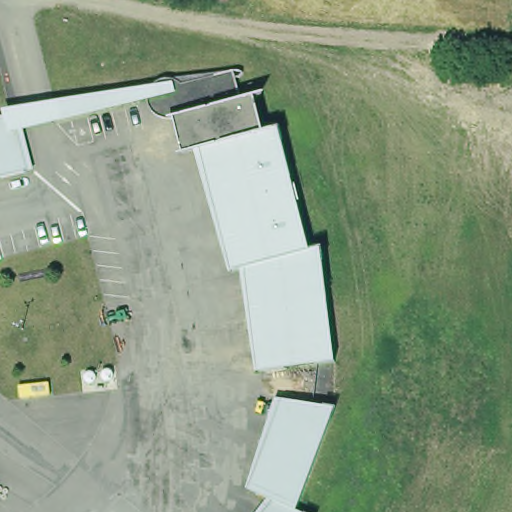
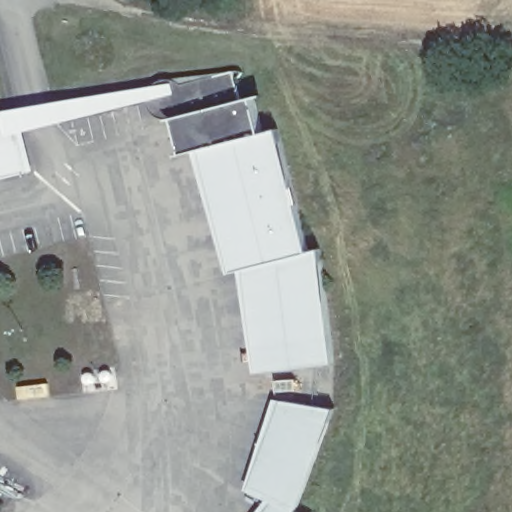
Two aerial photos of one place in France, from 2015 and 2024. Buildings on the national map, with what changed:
unchanged [(241,103),(255,99),(264,135),(288,128),(321,251),(332,248),(330,362),(255,372),(242,268),(228,272),(197,150),(178,154),(169,119),(168,119),(167,119),(165,119),(164,119),(162,119),(161,119),(160,119),(158,119),(157,118),(155,117),(154,117),(153,116),(152,115),(150,115),(150,114),(148,113),(147,111),(147,110),(146,110),(145,108),(145,107),(144,105),(143,104),(143,103),(143,101),(143,100),(143,99),(143,97),(143,95),(144,93),(144,91),(145,90),(145,89),(146,88),(147,86),(148,85),(149,85),(150,84),(151,82),(152,81),(153,81),(155,80),(156,80),(157,80),(158,79),(160,79),(162,79),(163,79),(164,79),(167,79),(168,79),(170,80),(171,80),(172,80),(173,81),(175,82),(176,83),(177,84),(178,85),(179,85),(180,87),(180,88),(182,90),(182,91),(234,77),(241,103)]
unchanged [(22,172),(0,178),(0,124),(10,122),(22,172)]
unchanged [(297,506),(274,495),(250,485),(283,395),(333,405),(297,506)]
unchanged [(310,512),(261,512),(274,495),(297,506),(310,512)]

